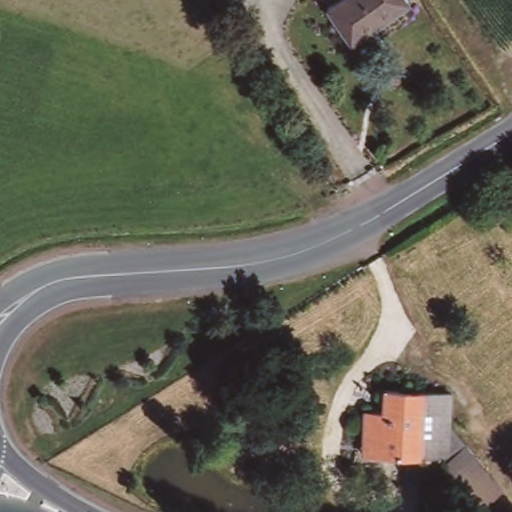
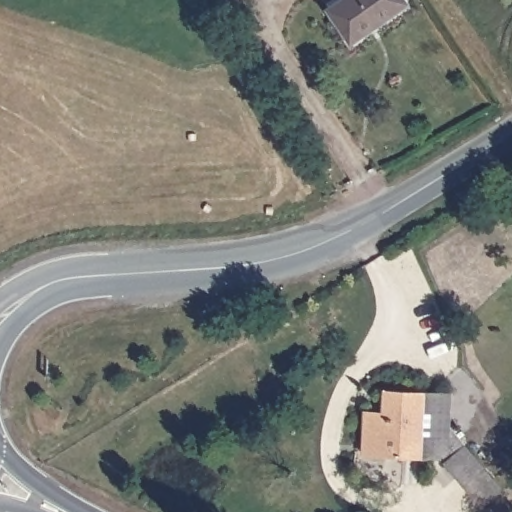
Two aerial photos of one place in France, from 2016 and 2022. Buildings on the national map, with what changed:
unchanged [(348,39),(326,8),(337,0),(407,0),(408,2),(375,25),(350,42),(348,39)]
unchanged [(372,446),(374,412),(392,414),(394,393),(433,396),(429,461),(385,457),(371,455),(372,446)]
unchanged [(456,397),(450,463),(429,461),(433,396),(456,397)]
unchanged [(498,481),(474,501),(440,462),(450,463),(453,430),(498,481)]

